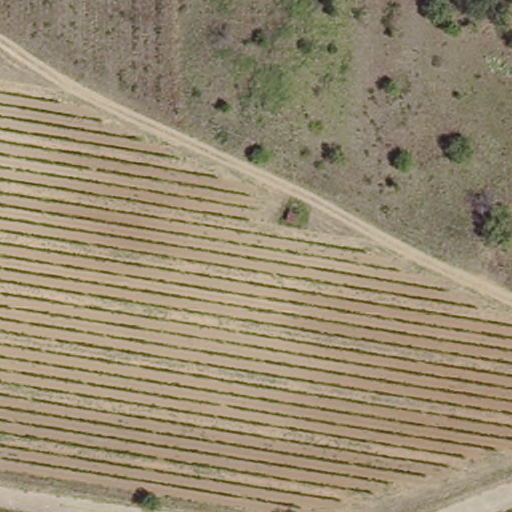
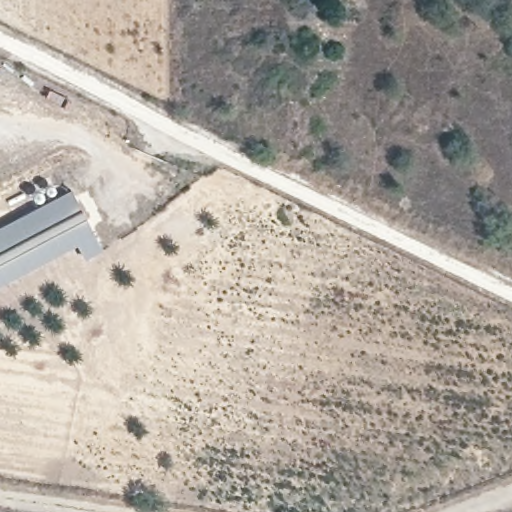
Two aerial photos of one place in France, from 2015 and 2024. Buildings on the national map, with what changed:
new [(99,258),(80,267),(72,251),(0,287),(0,235),(72,201),(99,258)]

